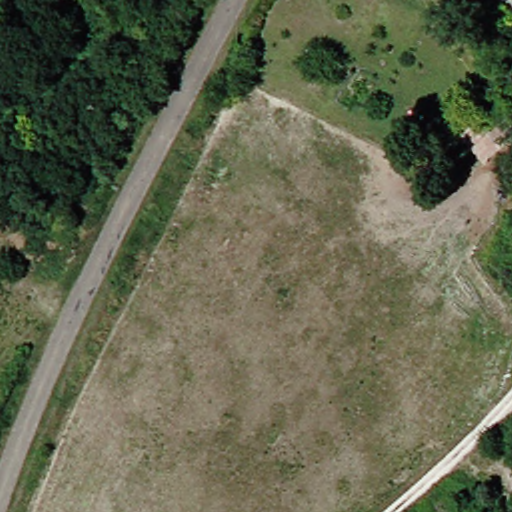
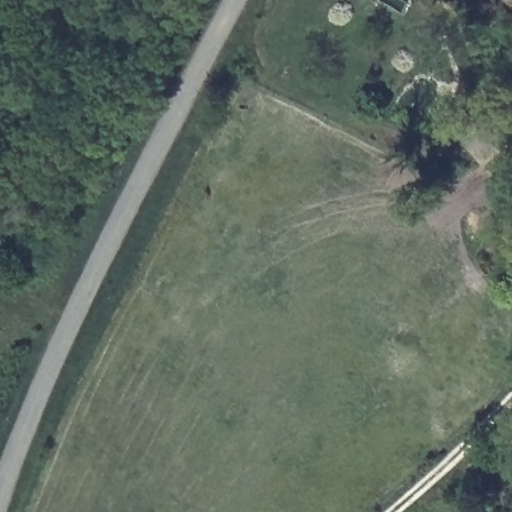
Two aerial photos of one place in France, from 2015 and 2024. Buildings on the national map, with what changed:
[]

